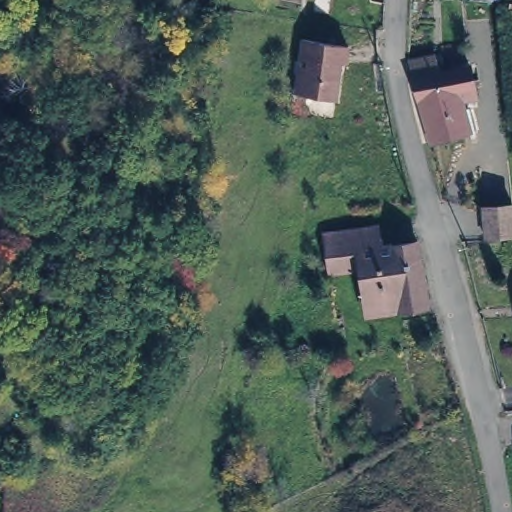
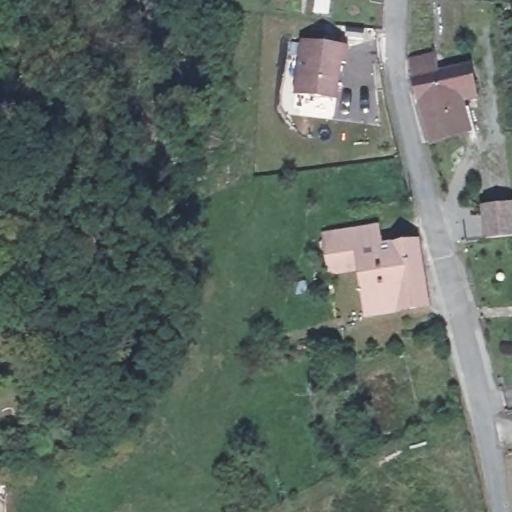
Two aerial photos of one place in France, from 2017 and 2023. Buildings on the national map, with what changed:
unchanged [(349,61),(343,60),(340,97),(299,94),(304,41),(350,45),(349,61)]
unchanged [(468,118),(462,120),(464,127),(429,136),(407,70),(405,55),(431,51),(436,70),(466,64),(472,95),(457,98),(459,109),(466,107),(468,118)]
unchanged [(510,207),(512,230),(512,236),(482,239),(480,210),(510,207)]
unchanged [(369,306),(363,267),(332,270),(331,255),(329,233),(377,225),(382,247),(417,242),(429,307),(397,311),(370,314),(369,306)]

